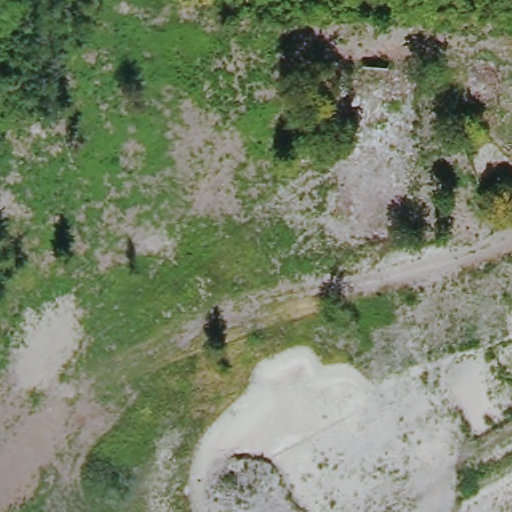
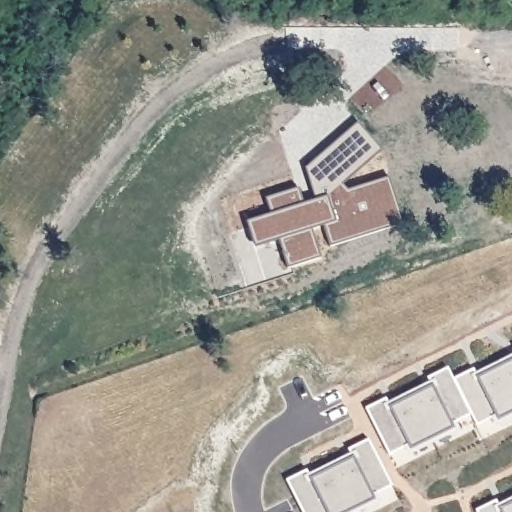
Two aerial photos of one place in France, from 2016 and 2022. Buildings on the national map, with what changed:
new [(331,247),(324,224),(311,228),(320,257),(286,267),(280,237),(254,246),(246,221),(272,213),(267,198),(297,189),(302,202),(315,199),(304,167),(358,122),(380,150),(340,184),(347,192),(388,179),(401,224),(331,247)]
new [(497,425),(492,418),(476,425),(470,416),(456,422),(460,430),(408,455),(405,448),(389,455),(365,407),(385,397),(388,401),(428,381),(426,377),(449,366),(453,378),(474,368),(476,372),(512,354),(512,418),(497,425)]
new [(380,501),(359,512),(302,512),(286,480),(307,468),(310,473),(350,453),(347,449),(369,437),(392,485),(376,492),(380,501)]
demolished [(383,470),(396,495),(413,485),(425,479),(435,496),(438,500),(419,512),(312,512),(317,509),(383,470)]
new [(476,512),(475,510),(496,500),(499,504),(512,498),(512,512),(476,512)]

